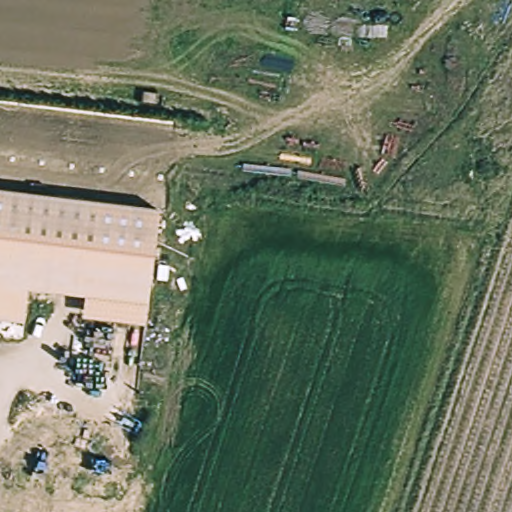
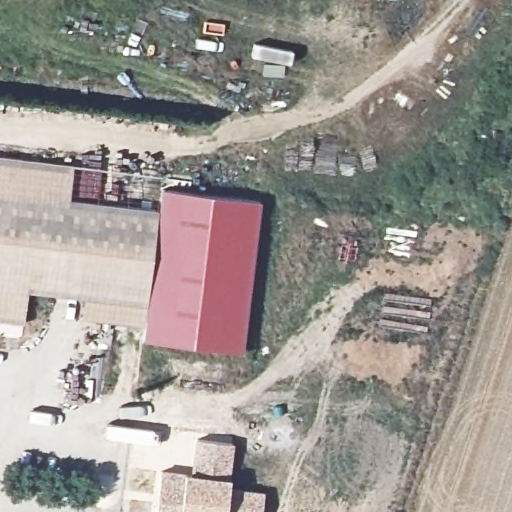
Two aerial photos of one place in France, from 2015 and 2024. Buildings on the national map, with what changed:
new [(68,197),(0,191),(0,157),(73,165),(68,197)]
new [(164,177),(162,190),(261,202),(242,354),(145,341),(147,326),(147,300),(155,203),(68,197),(73,165),(164,177)]
unchanged [(147,300),(27,291),(24,323),(0,322),(0,191),(155,203),(147,300)]
unchanged [(147,326),(83,321),(86,295),(147,300),(147,326)]
new [(163,473),(194,477),(199,442),(235,446),(230,481),(232,481),(231,490),(266,495),(264,512),(158,512),(159,506),(161,496),(163,473)]

